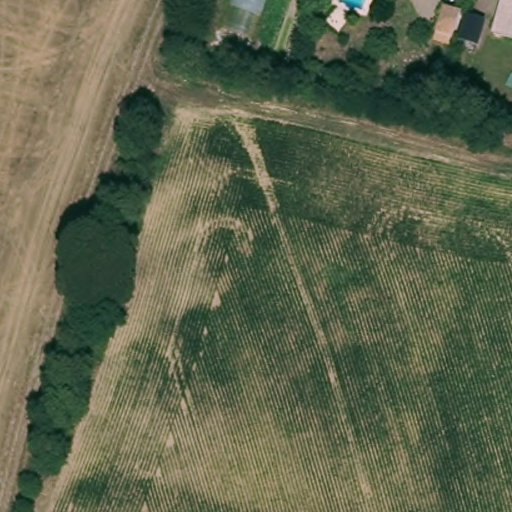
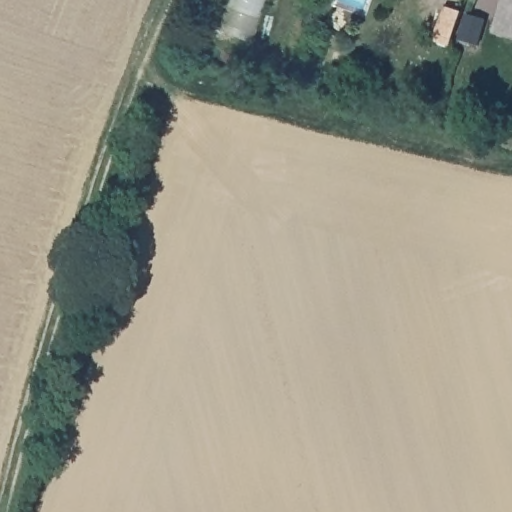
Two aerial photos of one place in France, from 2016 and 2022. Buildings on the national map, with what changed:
unchanged [(264,0),(251,39),(220,31),(230,0),(264,0)]
unchanged [(493,33),(502,0),(512,0),(512,38),(493,33)]
unchanged [(432,39),(435,33),(445,5),(462,11),(453,39),(451,45),(432,39)]
unchanged [(483,22),(476,45),(457,41),(465,17),(483,22)]

